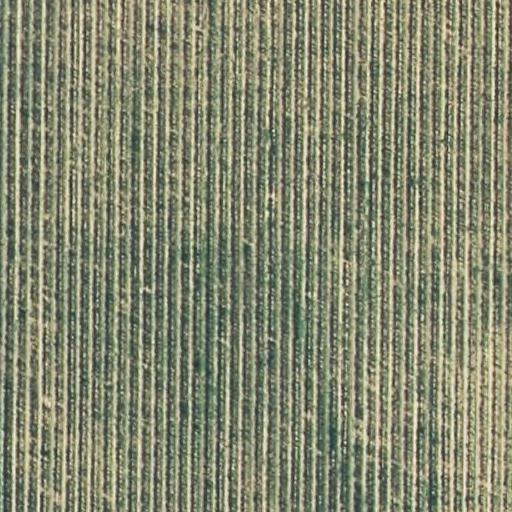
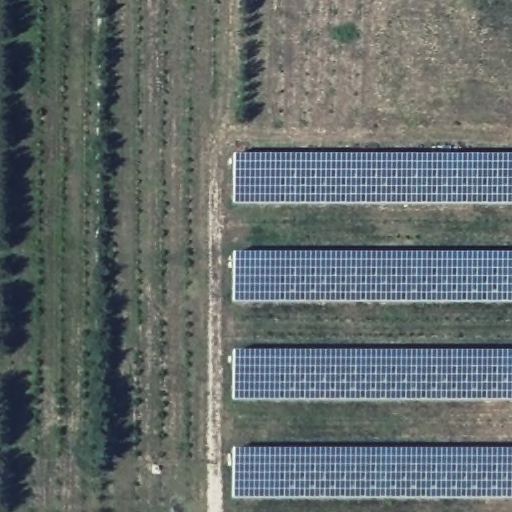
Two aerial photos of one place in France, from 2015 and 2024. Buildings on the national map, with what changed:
new [(512,157),(512,205),(233,205),(233,158),(512,157)]
new [(512,255),(512,303),(233,303),(233,255),(512,255)]
new [(512,353),(512,401),(233,401),(232,353),(512,353)]
new [(512,452),(512,499),(232,499),(233,451),(512,452)]

